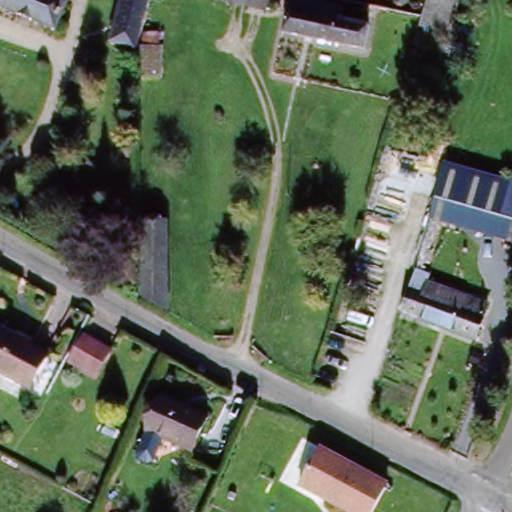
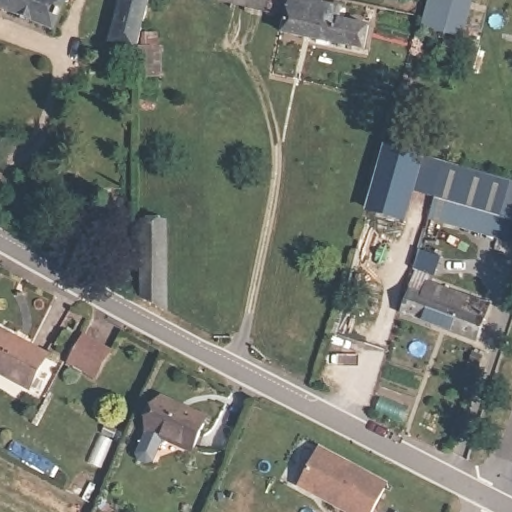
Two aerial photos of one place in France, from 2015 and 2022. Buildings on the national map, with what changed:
unchanged [(53,37),(0,12),(0,0),(69,0),(53,37)]
unchanged [(104,38),(121,0),(151,0),(131,45),(127,51),(104,38)]
unchanged [(270,15),(238,8),(214,2),(214,0),(272,0),(270,15)]
unchanged [(279,31),(285,0),(320,0),(345,5),(343,14),(372,19),(366,49),(279,31)]
unchanged [(445,35),(423,29),(430,0),(454,0),(445,35)]
unchanged [(159,73),(132,75),(131,45),(158,44),(159,73)]
new [(437,198),(415,192),(406,223),(367,211),(384,143),(448,161),(447,166),(437,198)]
unchanged [(457,204),(437,198),(447,166),(512,184),(512,218),(457,204)]
unchanged [(490,245),(491,240),(430,225),(437,198),(457,204),(512,218),(512,242),(509,250),(490,245)]
unchanged [(140,224),(168,224),(169,313),(146,300),(140,224)]
unchanged [(486,319),(478,342),(477,342),(401,316),(411,283),(420,286),(467,303),(464,312),(486,319)]
unchanged [(32,394),(0,377),(0,332),(51,359),(32,394)]
unchanged [(116,348),(100,376),(71,362),(83,332),(116,348)]
unchanged [(144,429),(162,395),(208,417),(190,452),(144,429)]
unchanged [(371,512),(339,512),(296,488),(320,444),(387,480),(371,512)]

